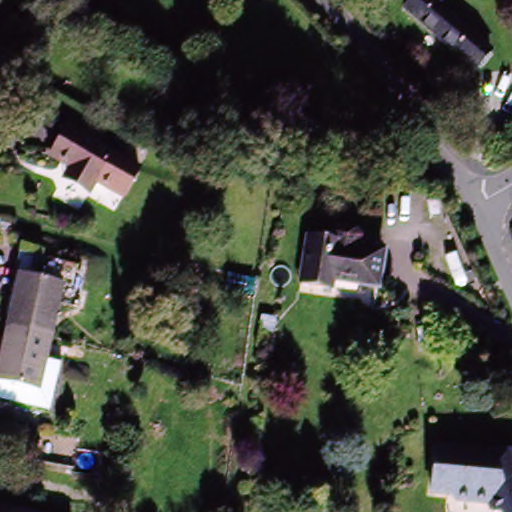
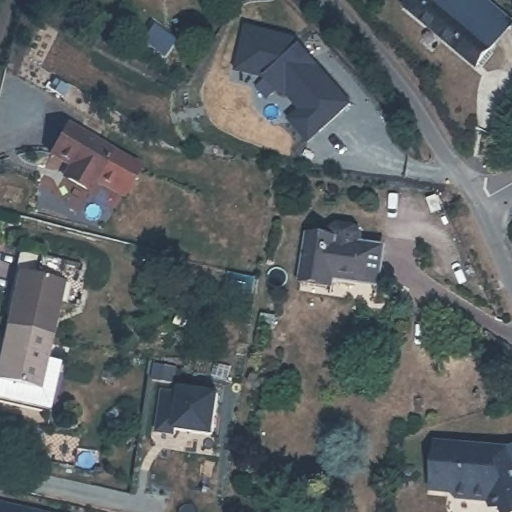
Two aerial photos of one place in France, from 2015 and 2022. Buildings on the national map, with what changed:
unchanged [(412,0),(443,0),(438,6),(492,49),(480,67),(405,9),(412,0)]
new [(154,26),(177,42),(167,57),(144,42),(154,26)]
new [(308,59),(314,64),(347,101),(317,127),(283,91),(276,90),(265,77),(235,70),(245,29),(291,39),(308,59)]
new [(298,107),(317,127),(306,137),(287,117),(298,107)]
unchanged [(62,180),(65,175),(69,168),(49,157),(66,128),(139,170),(122,199),(95,183),(91,190),(88,194),(62,180)]
unchanged [(335,275),(332,286),(302,280),(311,235),(387,247),(381,284),(335,275)]
unchanged [(7,318),(19,267),(61,276),(47,328),(7,318)]
unchanged [(247,281),(245,293),(227,288),(230,276),(247,281)]
unchanged [(35,383),(0,374),(0,346),(7,318),(47,328),(42,352),(35,383)]
unchanged [(58,356),(46,406),(0,395),(0,374),(35,383),(42,352),(58,356)]
new [(214,433),(176,428),(176,432),(157,431),(163,391),(180,392),(181,388),(219,393),(214,433)]
unchanged [(506,495),(468,492),(463,487),(443,485),(447,438),(512,444),(512,502),(505,501),(506,495)]
unchanged [(50,512),(0,512),(0,499),(50,512)]

